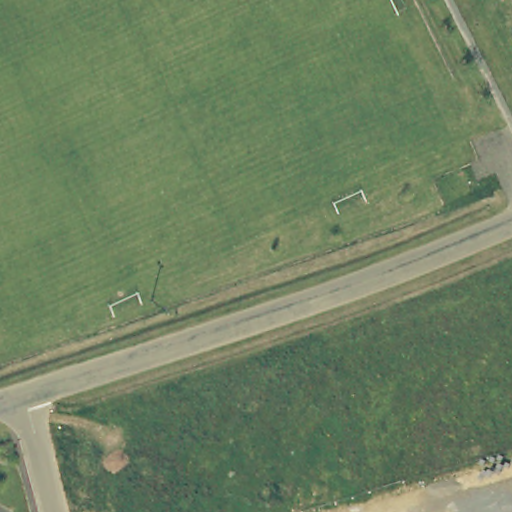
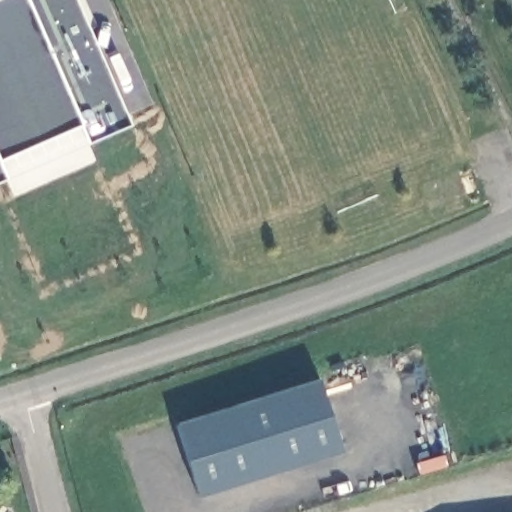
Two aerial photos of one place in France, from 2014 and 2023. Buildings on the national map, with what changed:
new [(103,82),(94,86),(99,99),(108,95),(119,122),(125,119),(125,121),(82,139),(77,125),(0,156),(0,0),(68,0),(103,82)]
new [(125,119),(119,122),(108,95),(99,99),(94,86),(103,82),(68,0),(75,0),(125,119)]
new [(1,172),(0,172),(0,170),(1,172)]
new [(200,497),(175,423),(320,378),(342,449),(200,497)]

